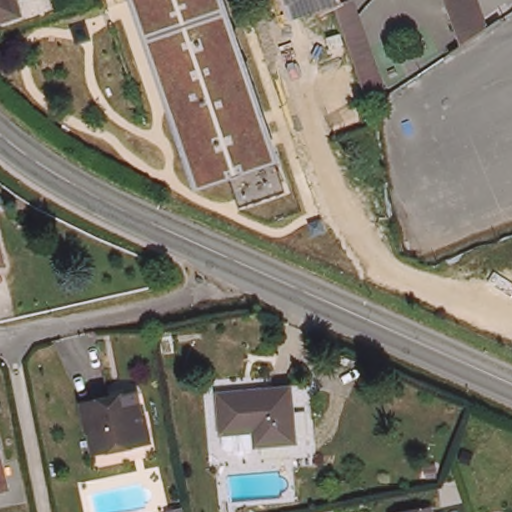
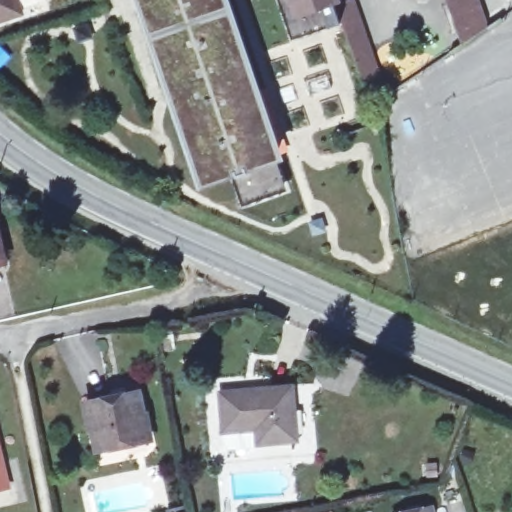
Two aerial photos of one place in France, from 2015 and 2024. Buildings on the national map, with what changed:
unchanged [(28,17),(0,26),(0,0),(22,0),(28,17)]
unchanged [(284,160),(288,191),(241,207),(231,177),(198,189),(135,0),(229,0),(284,160)]
unchanged [(289,0),(319,0),(293,8),(289,0)]
unchanged [(381,91),(369,99),(368,100),(334,0),(350,0),(381,91)]
unchanged [(484,25),(480,28),(463,40),(450,0),(476,0),(484,25)]
unchanged [(246,439),(247,445),(236,446),(233,439),(224,436),(223,420),(218,378),(289,370),(296,426),(258,430),(252,438),(246,439)]
unchanged [(138,388),(148,429),(123,434),(121,441),(93,447),(84,399),(138,388)]
unchanged [(0,451),(6,479),(0,481),(0,451)]
unchanged [(431,499),(433,512),(395,512),(394,508),(431,499)]

